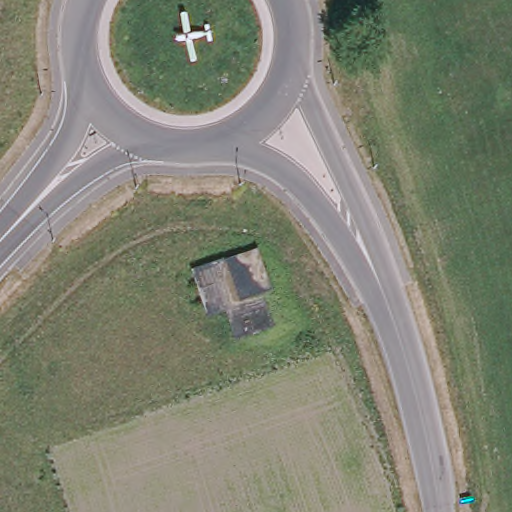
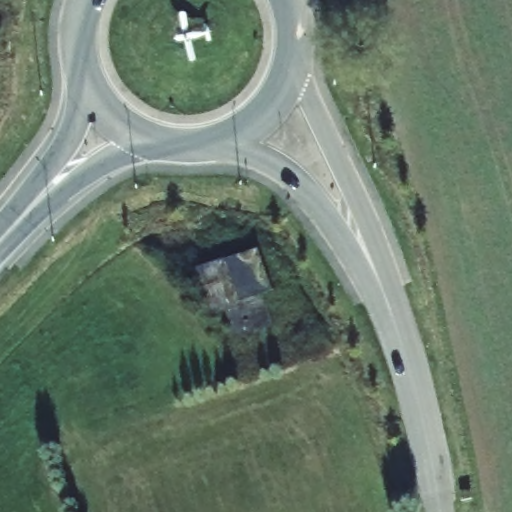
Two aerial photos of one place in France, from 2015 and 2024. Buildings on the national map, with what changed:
unchanged [(263,253),(277,294),(263,299),(273,327),(239,339),(229,312),(210,317),(194,273),(259,247),(263,253)]

